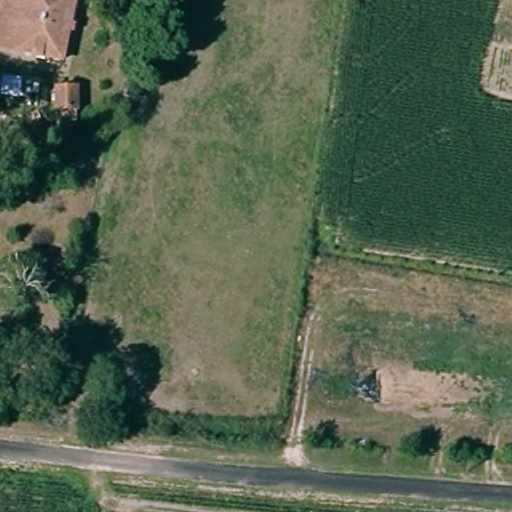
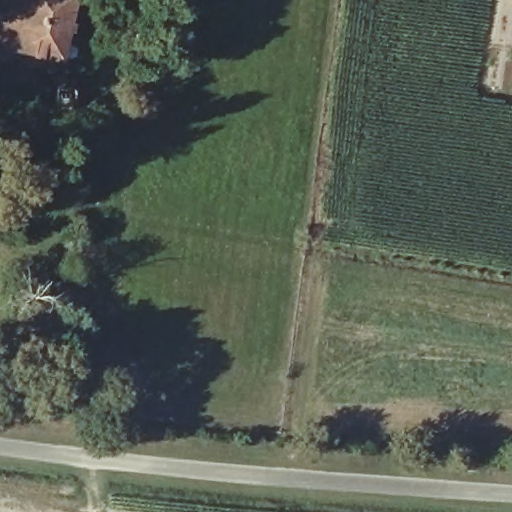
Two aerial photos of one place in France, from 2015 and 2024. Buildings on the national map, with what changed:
unchanged [(0,45),(0,19),(4,0),(74,0),(61,61),(0,45)]
unchanged [(76,83),(77,103),(46,103),(45,83),(76,83)]

